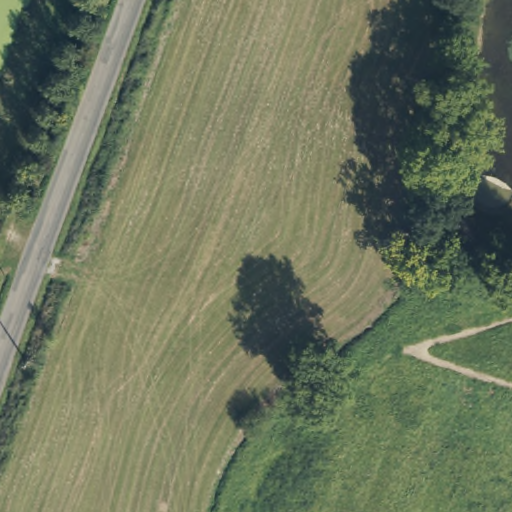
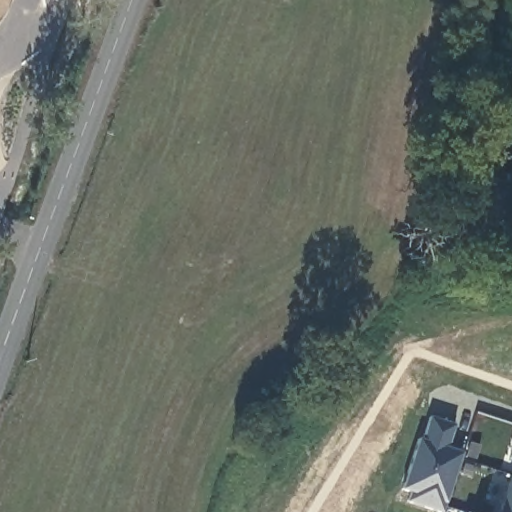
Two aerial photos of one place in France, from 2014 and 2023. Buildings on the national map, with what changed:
new [(448,449),(463,455),(443,512),(435,512),(407,503),(410,493),(401,489),(418,437),(423,438),(429,416),(454,425),(448,449)]
new [(511,476),(512,476),(512,512),(501,512),(511,476)]

